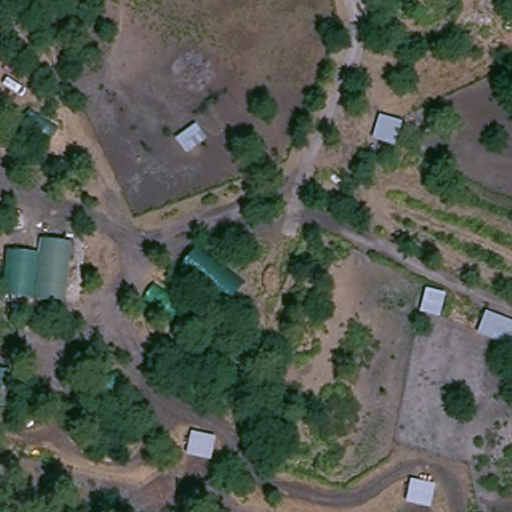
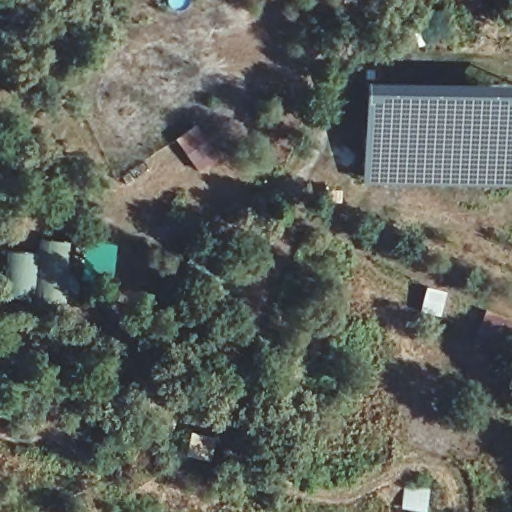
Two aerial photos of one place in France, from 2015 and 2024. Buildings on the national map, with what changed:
new [(443,84),(512,88),(512,185),(362,183),(363,87),(443,88),(443,84)]
unchanged [(63,252),(66,295),(26,300),(20,258),(63,252)]

